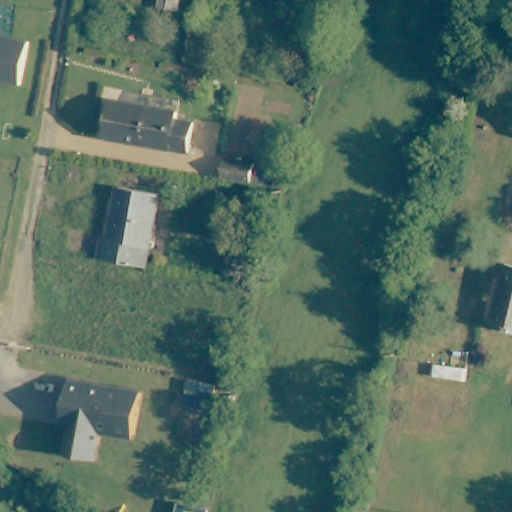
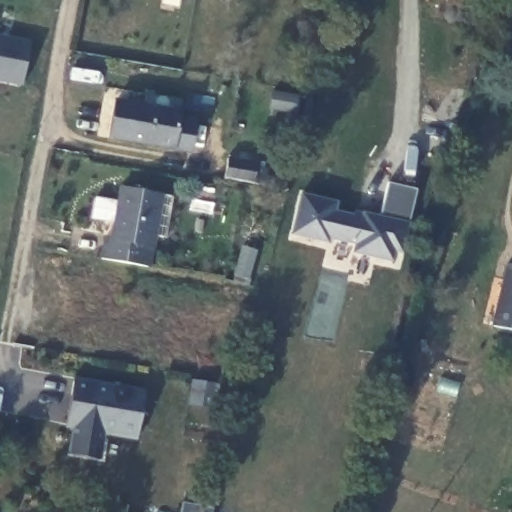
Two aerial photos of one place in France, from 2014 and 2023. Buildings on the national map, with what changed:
demolished [(175,11),(157,7),(159,0),(177,0),(175,11)]
unchanged [(33,37),(25,79),(0,75),(0,32),(33,37)]
unchanged [(176,120),(193,125),(190,155),(173,151),(110,138),(115,101),(140,106),(142,95),(179,102),(176,120)]
unchanged [(219,176),(222,158),(251,165),(248,181),(219,176)]
new [(303,192),(339,201),(337,210),(352,214),(353,210),(379,216),(386,181),(419,190),(410,223),(402,254),(395,252),(393,262),(353,252),(355,244),(331,239),(330,243),(293,234),(303,192)]
unchanged [(144,263),(96,254),(100,234),(107,234),(116,184),(156,192),(144,263)]
unchanged [(512,330),(489,324),(504,262),(512,265),(512,330)]
unchanged [(69,451),(72,435),(74,422),(67,421),(76,374),(115,382),(115,384),(147,391),(139,432),(138,437),(106,430),(104,441),(100,457),(69,451)]
new [(212,508),(211,512),(180,512),(183,502),(212,508)]

